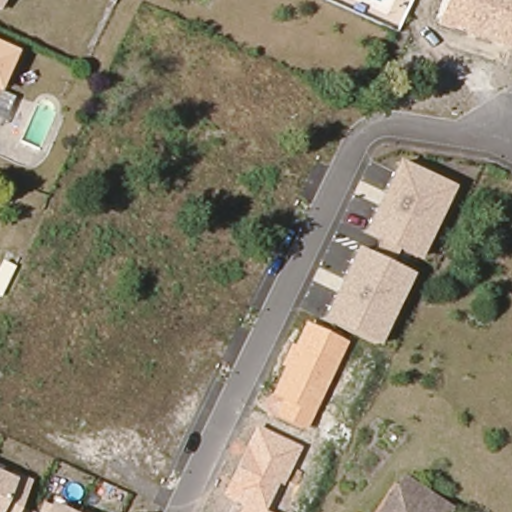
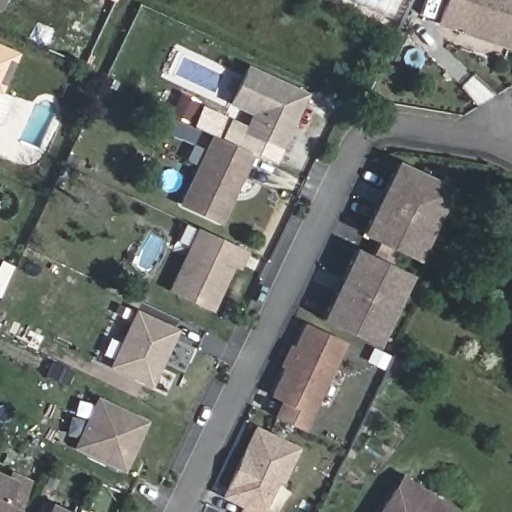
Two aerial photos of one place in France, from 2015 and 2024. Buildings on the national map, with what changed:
unchanged [(453,30),(437,25),(446,0),(512,0),(512,48),(464,34),(464,31),(455,27),(453,30)]
unchanged [(11,56),(0,79),(0,51),(11,56)]
new [(244,130),(251,114),(229,104),(248,64),(309,92),(283,149),(244,130)]
new [(222,224),(180,204),(211,133),(255,152),(222,224)]
unchanged [(321,320),(354,248),(373,256),(379,242),(362,234),(397,160),(454,186),(420,261),(396,250),(390,264),(411,274),(376,348),(321,320)]
new [(235,265),(213,310),(169,289),(197,227),(249,251),(241,268),(235,265)]
unchanged [(1,320),(0,320),(0,294),(10,275),(21,280),(1,320)]
new [(152,387),(108,366),(135,307),(179,328),(152,387)]
unchanged [(281,400),(270,395),(283,367),(280,365),(290,343),(295,345),(305,323),(347,342),(304,431),(274,416),(281,400)]
new [(125,471),(73,446),(98,396),(148,420),(125,471)]
unchanged [(266,512),(239,512),(242,507),(220,496),(254,426),(300,447),(283,485),(278,483),(263,510),(266,512)]
unchanged [(34,479),(18,512),(0,512),(0,472),(7,475),(11,468),(34,479)]
unchanged [(386,504),(398,486),(404,476),(449,507),(445,512),(380,512),(386,504)]
unchanged [(48,501),(71,512),(43,512),(48,501)]

